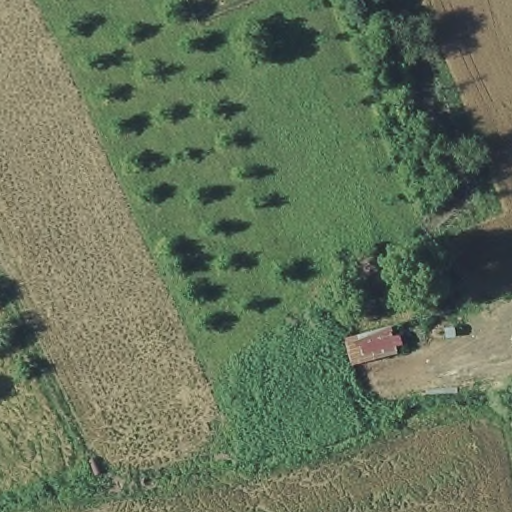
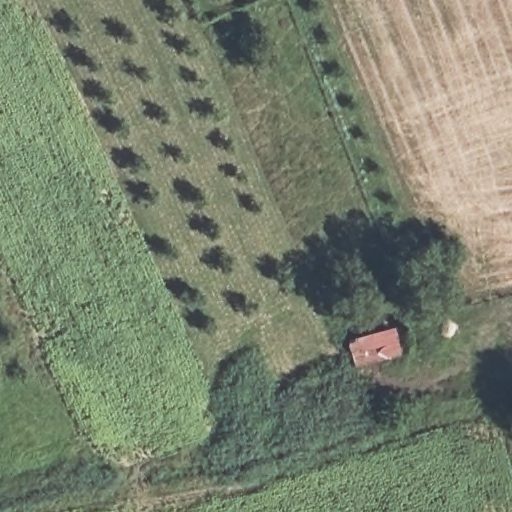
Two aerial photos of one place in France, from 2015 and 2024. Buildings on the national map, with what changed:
unchanged [(406,353),(357,366),(350,340),(397,328),(406,353)]

